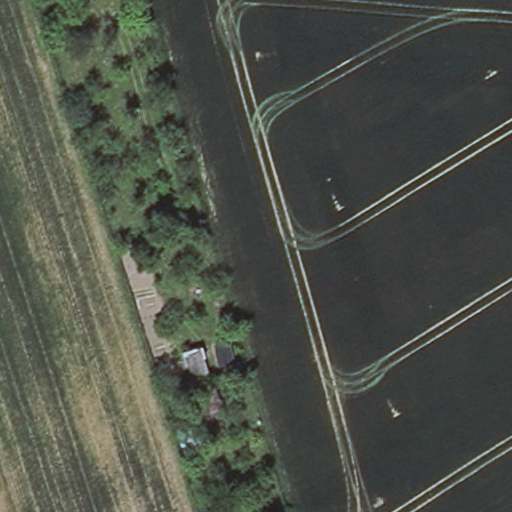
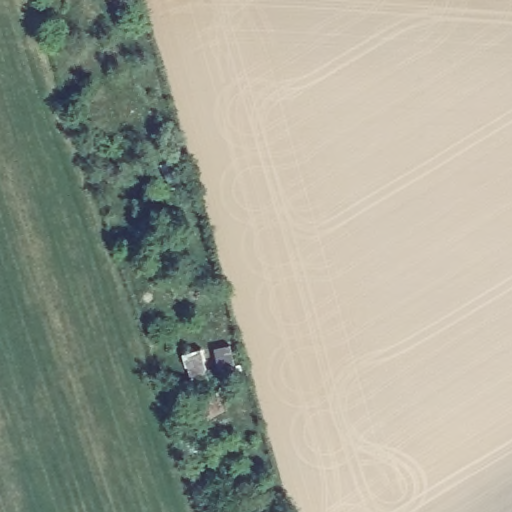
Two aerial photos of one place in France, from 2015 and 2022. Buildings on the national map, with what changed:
unchanged [(184,363),(180,350),(200,343),(205,356),(184,363)]

